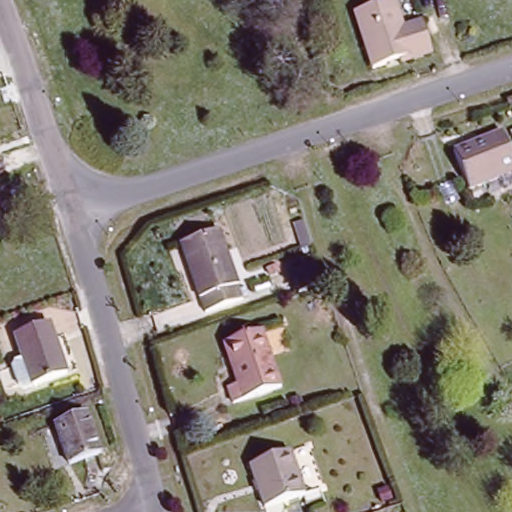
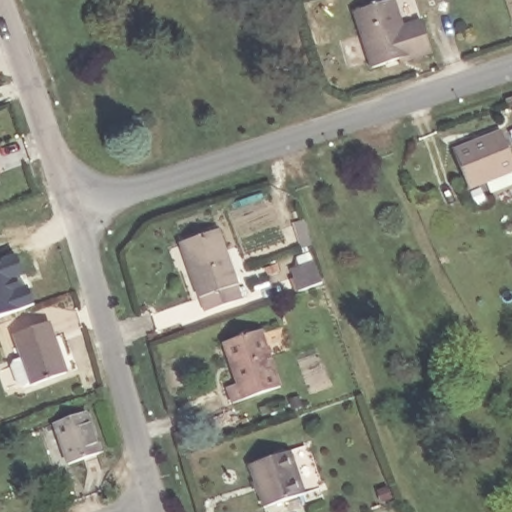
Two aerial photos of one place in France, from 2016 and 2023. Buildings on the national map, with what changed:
unchanged [(403,27),(422,22),(423,26),(432,56),(415,61),(410,57),(376,68),(359,13),(395,2),(403,27)]
unchanged [(505,132),(512,149),(512,173),(471,188),(457,151),(505,132)]
unchanged [(216,226),(242,294),(205,308),(179,240),(216,226)]
new [(25,269),(16,272),(22,287),(30,284),(37,300),(0,314),(0,259),(18,252),(25,269)]
unchanged [(315,269),(320,284),(299,292),(294,277),(315,269)]
unchanged [(50,324),(69,373),(32,387),(15,337),(50,324)]
unchanged [(263,332),(283,387),(237,404),(231,387),(240,384),(227,345),(263,332)]
unchanged [(91,409),(107,450),(74,462),(58,421),(91,409)]
unchanged [(294,447),(310,488),(273,503),(257,462),(294,447)]

